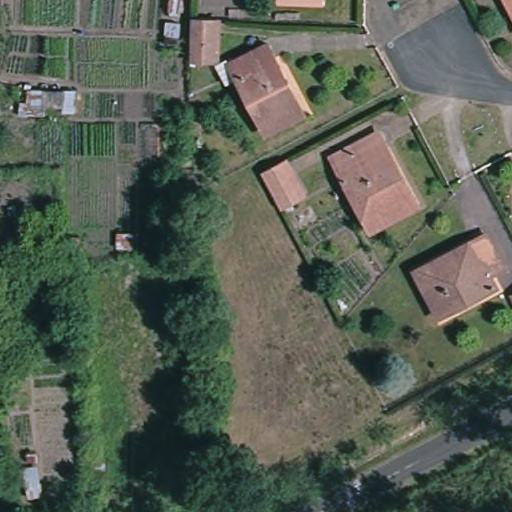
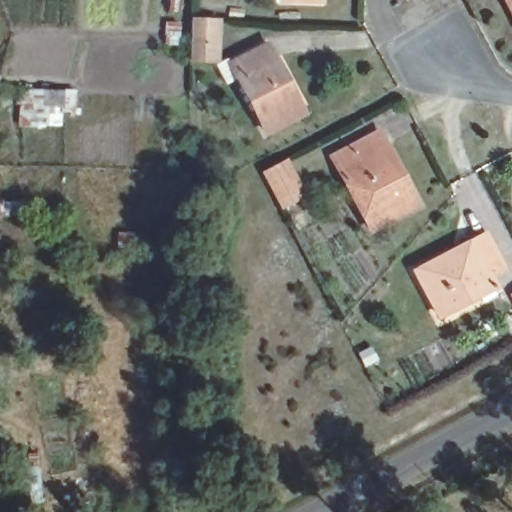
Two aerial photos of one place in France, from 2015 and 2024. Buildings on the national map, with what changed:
unchanged [(306,0),(323,0),(322,1),(306,0)]
unchanged [(201,11),(227,12),(228,54),(200,54),(201,11)]
unchanged [(293,83),(287,86),(298,110),(265,128),(241,77),(229,84),(218,64),(231,56),(234,61),(272,41),(293,83)]
unchanged [(28,104),(29,89),(82,91),(81,114),(39,112),(38,119),(6,119),(7,104),(28,104)]
unchanged [(391,149),(412,190),(420,206),(373,230),(348,183),(336,159),(344,153),(383,134),(391,149)]
unchanged [(310,198),(286,212),(264,170),(290,158),(310,198)]
unchanged [(503,258),(485,267),(496,289),(448,314),(438,292),(430,296),(416,269),(455,249),(475,239),(490,231),(503,258)]

